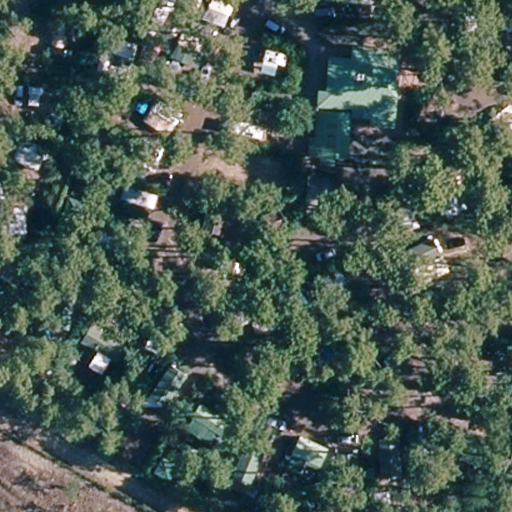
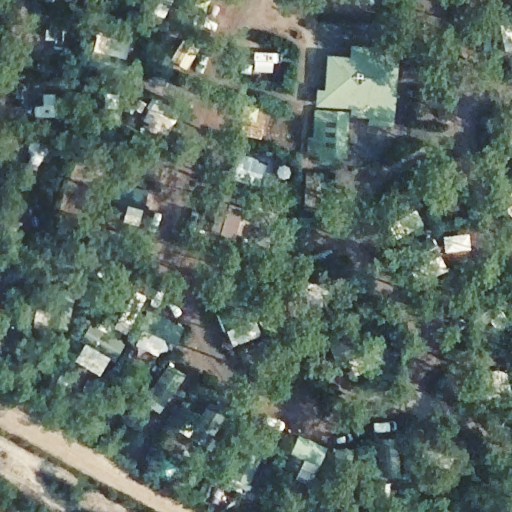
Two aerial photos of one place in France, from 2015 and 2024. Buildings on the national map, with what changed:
unchanged [(343,110),(341,110),(342,103),(308,100),(310,87),(317,87),(320,54),(342,56),(343,42),(388,46),(381,120),(358,118),(358,117),(359,111),(343,110)]
unchanged [(310,157),(311,150),(300,149),(301,134),(307,134),(310,106),(332,108),(338,108),(335,152),(328,151),(324,151),(323,158),(310,157)]

